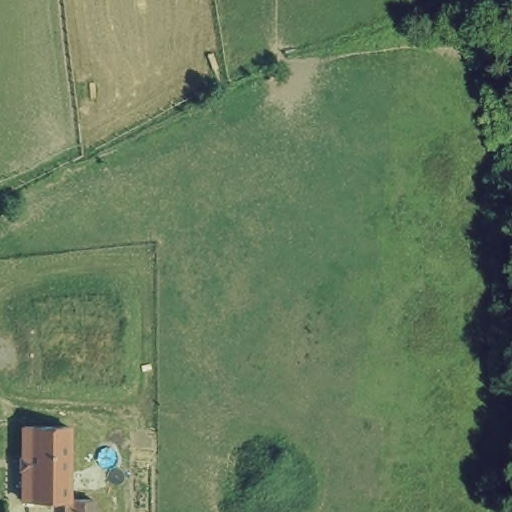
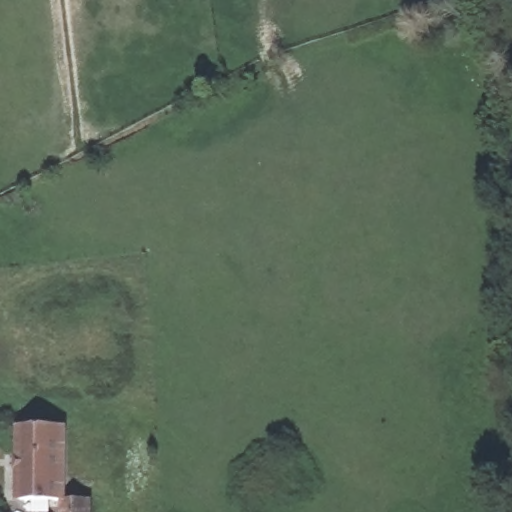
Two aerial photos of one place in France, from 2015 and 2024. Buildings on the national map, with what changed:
unchanged [(71,491),(120,491),(120,512),(60,512),(60,501),(19,502),(17,424),(73,423),(71,491)]

